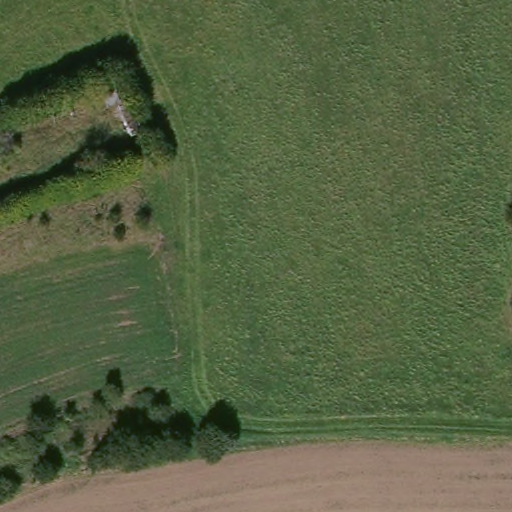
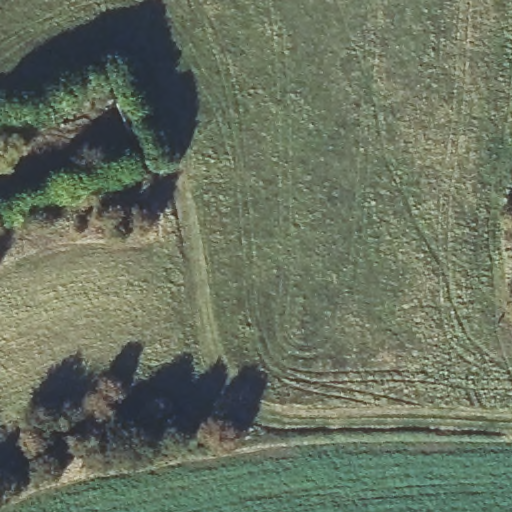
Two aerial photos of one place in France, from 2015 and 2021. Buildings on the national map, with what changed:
[]

